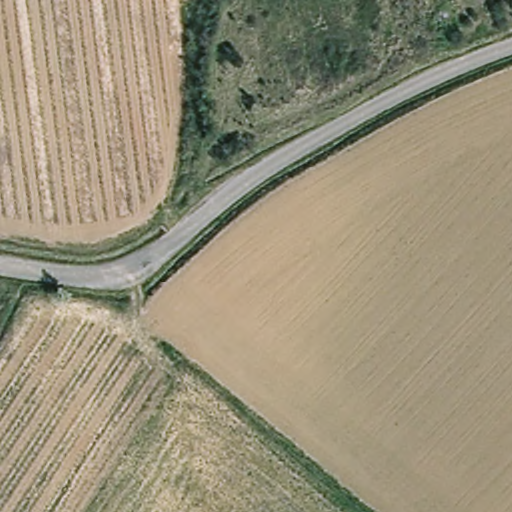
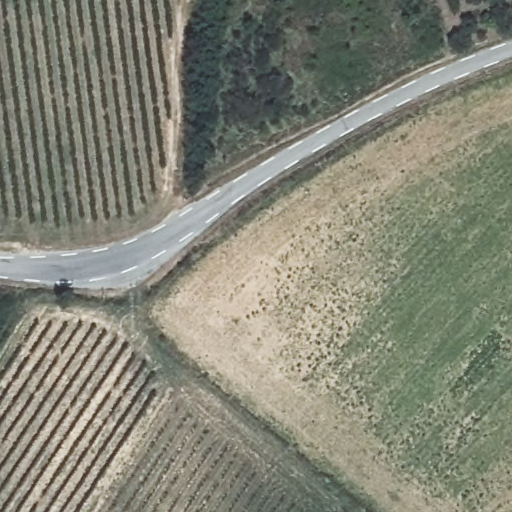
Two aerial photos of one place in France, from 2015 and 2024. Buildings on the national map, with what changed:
[]

